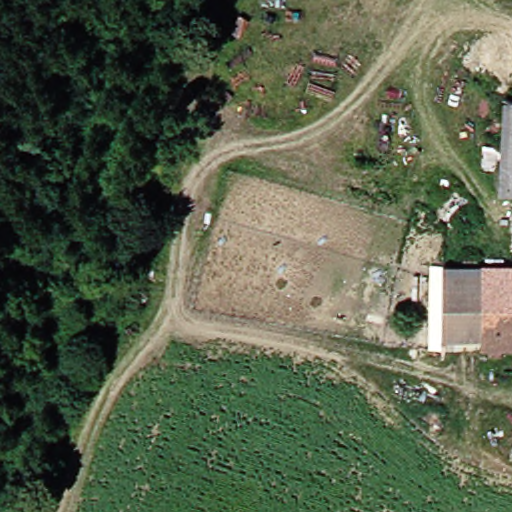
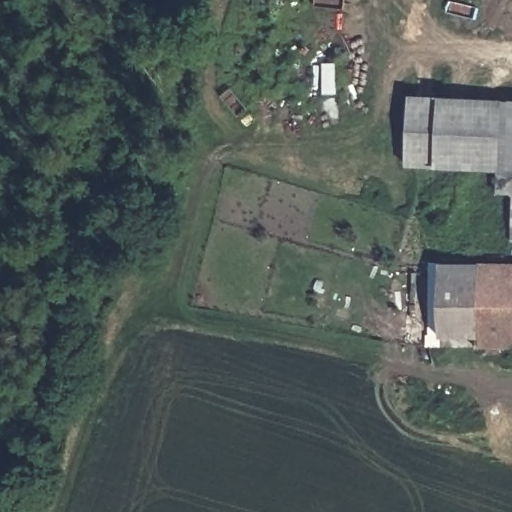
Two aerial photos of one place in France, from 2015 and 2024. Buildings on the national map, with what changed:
new [(436,169),(406,167),(409,95),(437,96),(500,100),(500,108),(496,172),(436,169)]
unchanged [(493,197),(500,108),(512,108),(512,198),(493,197)]
unchanged [(444,316),(443,268),(477,268),(477,341),(452,341),(445,341),(444,316)]
unchanged [(479,351),(480,269),(512,269),(512,352),(479,351)]

